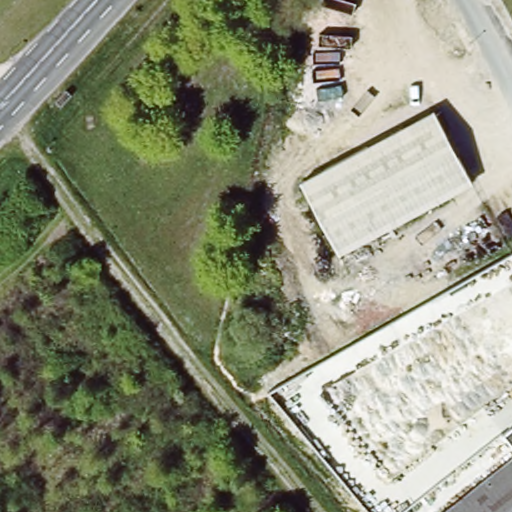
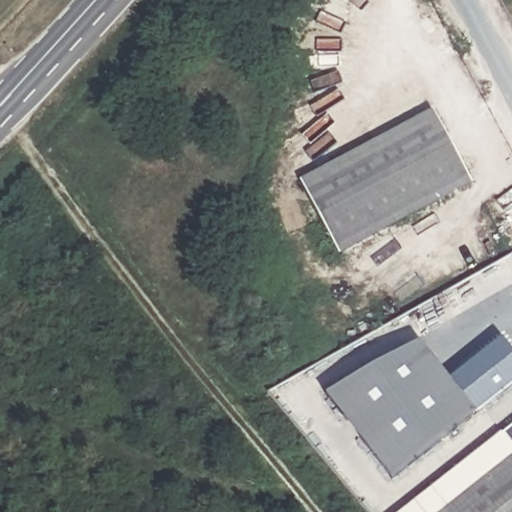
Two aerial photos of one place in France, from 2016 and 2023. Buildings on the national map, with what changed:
unchanged [(470,182),(337,256),(300,184),(433,110),(470,182)]
new [(450,382),(503,340),(512,351),(512,384),(392,478),(327,396),(419,343),(450,382)]
unchanged [(512,428),(512,444),(504,434),(512,428)]
unchanged [(512,448),(512,512),(427,512),(512,448)]

